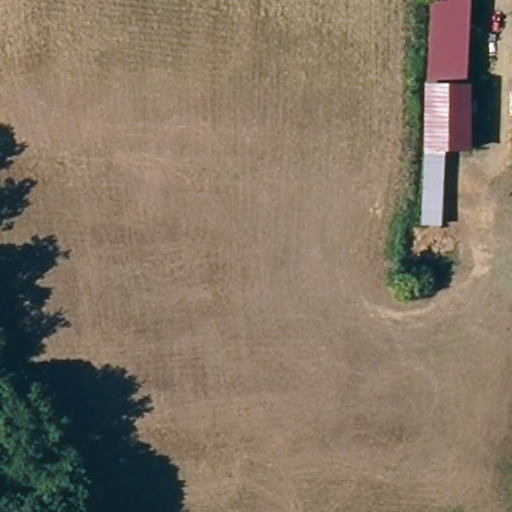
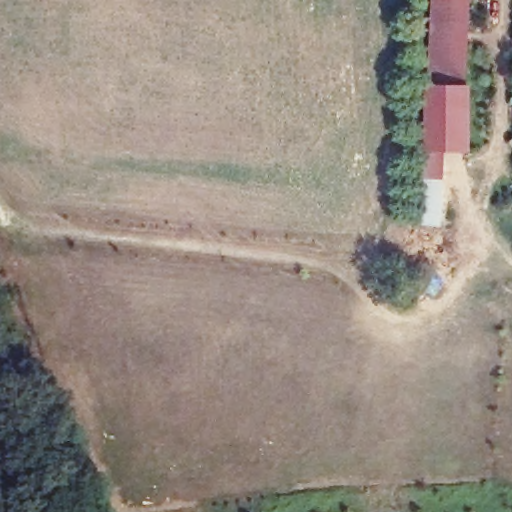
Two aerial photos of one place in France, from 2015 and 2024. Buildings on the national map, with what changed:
unchanged [(456,80),(432,80),(436,13),(436,0),(457,0),(457,13),(456,80)]
unchanged [(475,81),(473,145),(448,145),(430,144),(432,80),(456,80),(475,81)]
unchanged [(448,145),(447,201),(447,224),(426,224),(427,200),(430,144),(448,145)]

